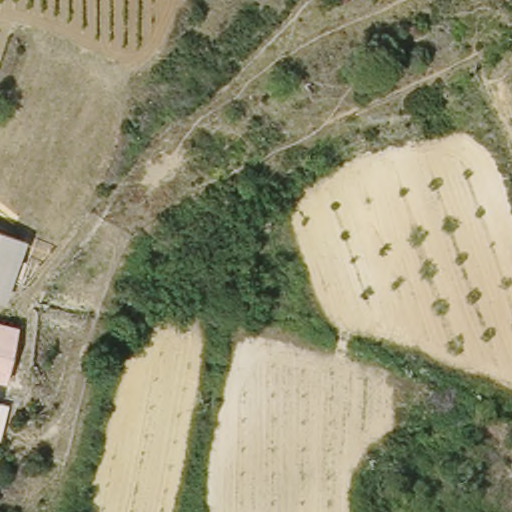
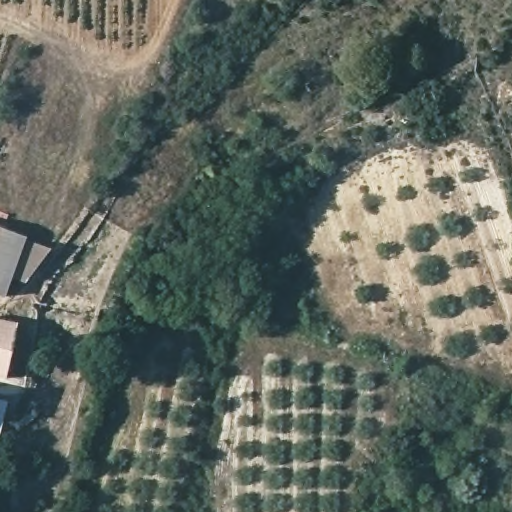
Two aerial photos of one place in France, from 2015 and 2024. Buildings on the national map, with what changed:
unchanged [(7,301),(0,298),(0,229),(27,238),(7,301)]
unchanged [(12,351),(9,364),(6,379),(0,377),(0,319),(17,323),(12,351)]

